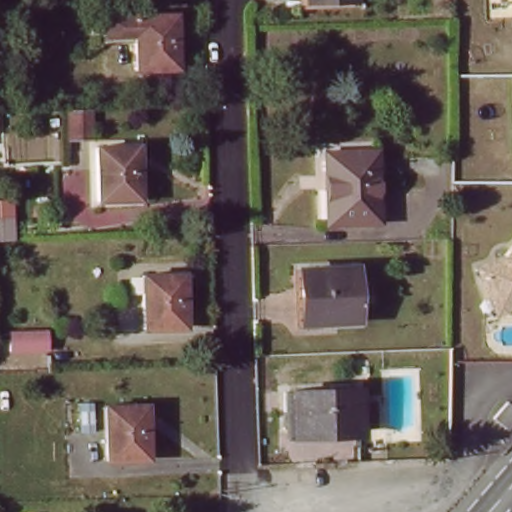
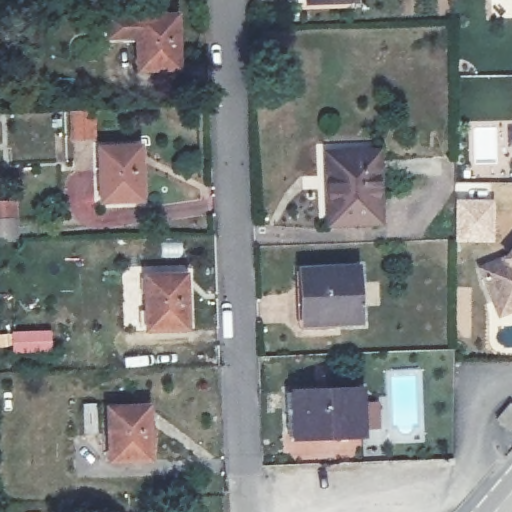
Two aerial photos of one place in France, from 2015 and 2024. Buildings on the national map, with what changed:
unchanged [(353,1),(307,3),(306,0),(353,0),(353,1)]
unchanged [(134,70),(133,43),(111,44),(109,18),(160,16),(173,16),(173,33),(175,69),(134,70)]
unchanged [(96,146),(79,147),(75,113),(101,109),(103,145),(96,146)]
unchanged [(98,201),(96,147),(123,147),(137,147),(137,163),(139,201),(98,201)]
unchanged [(376,223),(325,225),(324,187),(331,187),(330,154),(373,152),(376,223)]
unchanged [(22,247),(0,247),(0,198),(22,197),(22,247)]
new [(494,198),(494,241),(454,241),(454,199),(494,198)]
unchanged [(505,312),(489,269),(512,260),(512,309),(505,312)]
unchanged [(363,323),(305,325),(303,271),(361,269),(363,323)]
unchanged [(142,274),(186,272),(188,330),(143,333),(142,274)]
unchanged [(57,360),(18,362),(18,335),(58,333),(57,360)]
unchanged [(294,444),(293,433),(292,393),(357,390),(359,431),(322,434),(322,443),(294,444)]
unchanged [(108,460),(106,407),(134,406),(147,406),(148,424),(149,458),(108,460)]
unchanged [(512,427),(512,436),(508,432),(512,427)]

